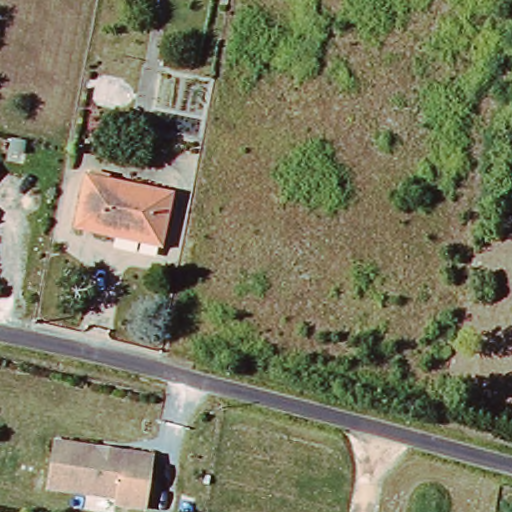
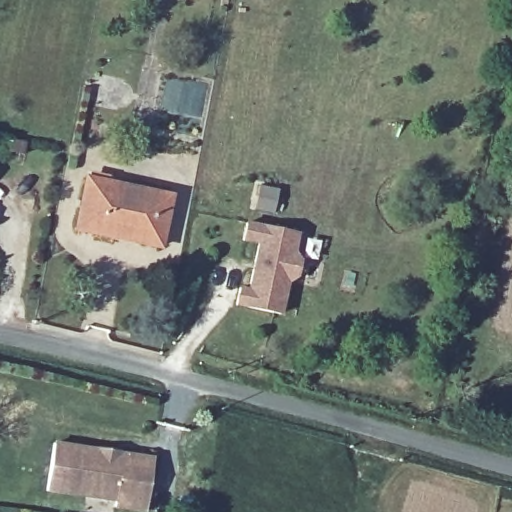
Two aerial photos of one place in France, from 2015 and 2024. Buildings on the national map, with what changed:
unchanged [(114,237),(79,230),(89,180),(172,197),(164,235),(161,248),(114,237)]
new [(249,290),(254,270),(255,263),(259,244),(243,240),(247,224),(298,234),(295,252),(300,262),(297,277),(288,283),(281,314),(237,304),(240,289),(249,290)]
unchanged [(147,511),(116,507),(116,501),(49,490),(55,443),(98,450),(123,454),(156,459),(147,511)]

